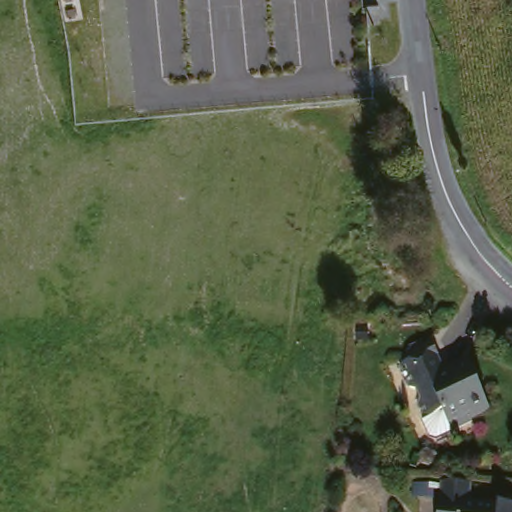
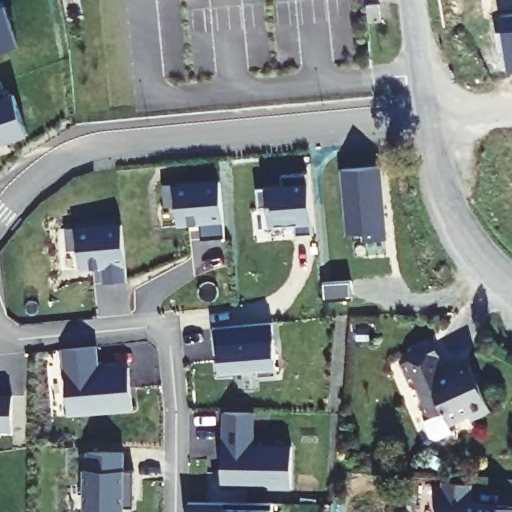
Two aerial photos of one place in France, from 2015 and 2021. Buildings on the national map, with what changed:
new [(5,4),(18,44),(0,50),(0,0),(2,5),(5,4)]
unchanged [(379,4),(380,20),(369,20),(367,5),(379,4)]
new [(6,96),(14,94),(26,133),(0,142),(0,80),(1,80),(6,96)]
new [(267,210),(258,210),(256,190),(265,190),(265,187),(281,186),(281,176),(308,175),(308,185),(311,223),(311,235),(296,236),(295,226),(268,227),(267,210)]
new [(218,182),(222,239),(199,241),(197,224),(176,226),(174,205),(164,206),(162,187),(218,182)]
new [(119,224),(124,280),(100,282),(99,266),(77,268),(75,247),(65,248),(64,228),(119,224)]
new [(352,281),(353,300),(325,302),(323,284),(352,281)]
new [(272,324),(277,376),(258,378),(258,371),(220,374),(218,346),(214,347),(212,329),(272,324)]
unchanged [(475,418),(474,414),(452,423),(445,410),(425,419),(419,405),(422,396),(418,388),(411,387),(401,365),(412,360),(409,353),(434,341),(440,355),(447,368),(455,365),(456,370),(473,363),(495,409),(475,418)]
new [(96,365),(97,371),(127,369),(130,410),(66,415),(61,350),(95,347),(96,365)]
new [(10,430),(0,430),(0,396),(10,396),(10,430)]
new [(222,446),(223,427),(224,412),(254,413),(254,428),(253,446),(292,447),(291,488),(220,486),(221,446),(222,446)]
new [(84,470),(87,470),(87,452),(123,453),(122,470),(134,471),(132,508),(122,508),(122,512),(101,512),(101,510),(83,510),(84,470)]
unchanged [(440,481),(470,483),(468,502),(512,505),(512,512),(438,512),(440,481)]
new [(187,501),(273,503),(273,512),(187,512),(187,501)]

